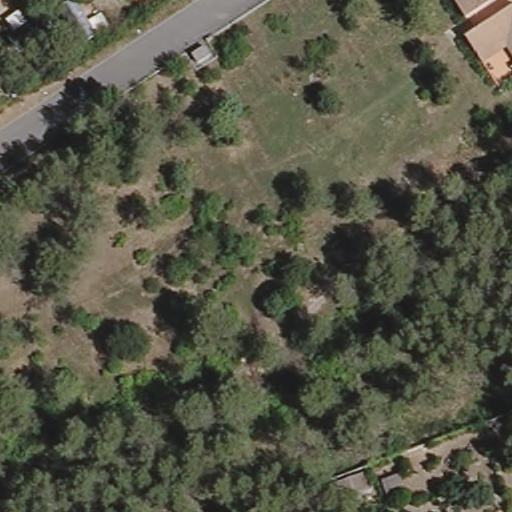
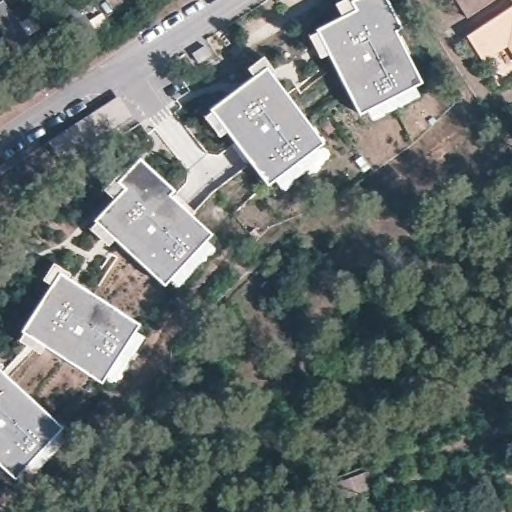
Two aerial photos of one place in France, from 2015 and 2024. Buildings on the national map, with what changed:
new [(367,110),(360,113),(317,30),(357,9),(375,0),(380,0),(422,81),(415,85),(420,95),(372,119),(367,110)]
unchanged [(490,0),(465,18),(452,0),(490,0)]
unchanged [(507,43),(480,61),(463,37),(512,4),(512,50),(507,43)]
new [(280,186),(274,178),(267,183),(212,106),(266,66),(322,141),(316,146),(322,155),(280,186)]
new [(120,95),(135,118),(62,163),(47,140),(120,95)]
new [(177,285),(170,278),(165,284),(95,220),(126,187),(119,180),(140,157),(174,189),(170,194),(212,232),(206,239),(213,246),(177,285)]
new [(113,380),(105,375),(101,381),(22,330),(58,273),(137,324),(133,331),(142,336),(113,380)]
new [(21,471),(16,477),(0,462),(0,369),(62,426),(57,432),(64,439),(29,478),(21,471)]
unchanged [(372,487),(338,500),(332,486),(366,472),(372,487)]
unchanged [(388,499),(382,480),(398,475),(404,493),(388,499)]

